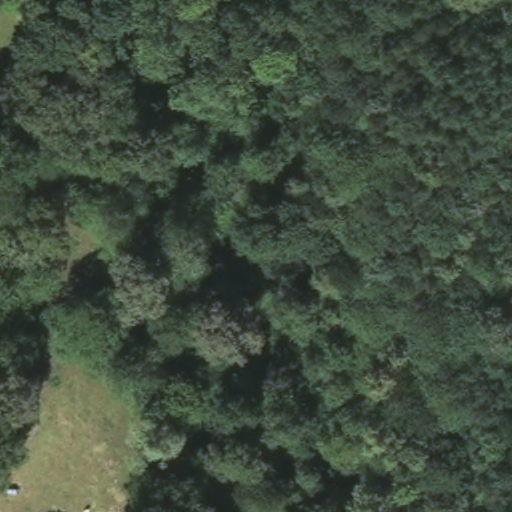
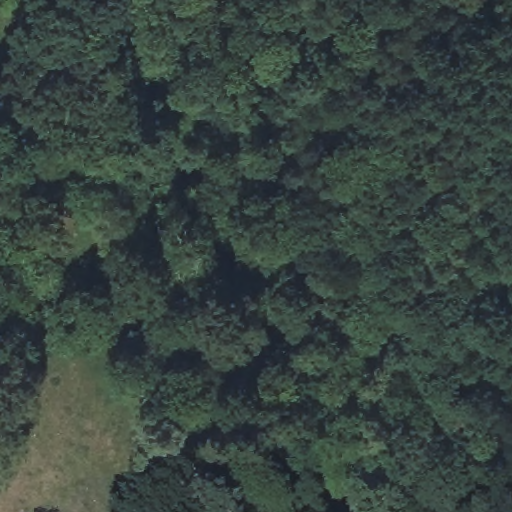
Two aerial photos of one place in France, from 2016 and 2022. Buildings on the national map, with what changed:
[]

